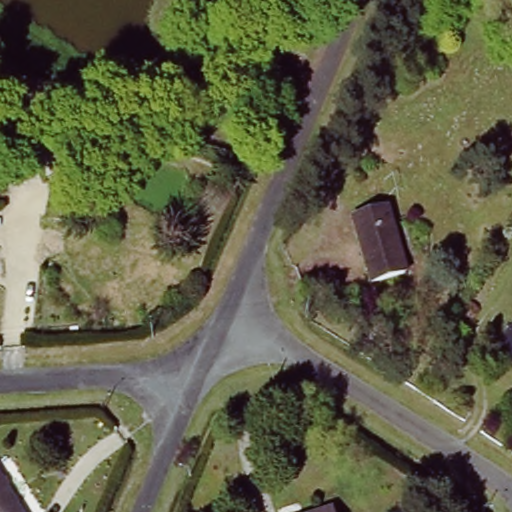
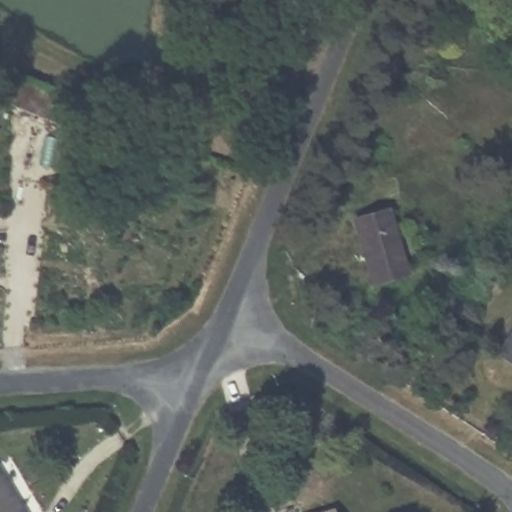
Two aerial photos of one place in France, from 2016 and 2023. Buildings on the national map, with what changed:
unchanged [(50,100),(40,127),(0,111),(0,80),(50,100)]
unchanged [(397,208),(400,223),(414,220),(421,252),(409,255),(414,279),(375,287),(358,216),(397,208)]
unchanged [(512,335),(512,363),(500,355),(512,335)]
unchanged [(0,512),(0,471),(25,512),(0,512)]

